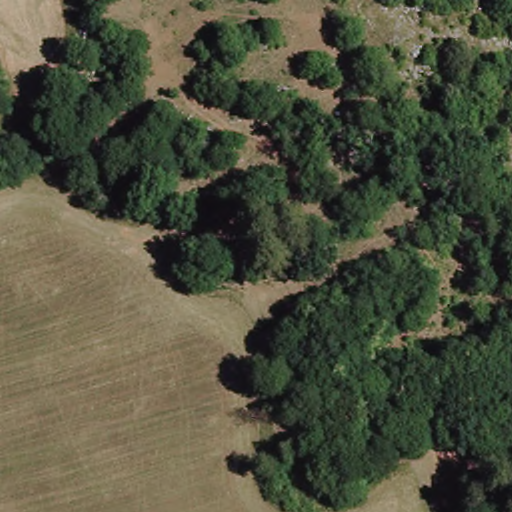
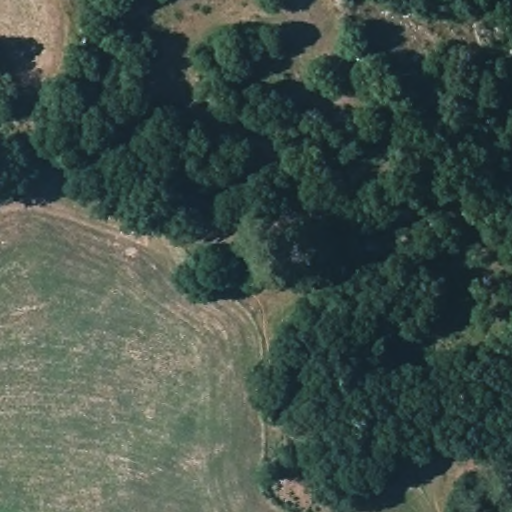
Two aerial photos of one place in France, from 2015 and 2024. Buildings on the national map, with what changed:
unchanged [(256,276),(238,255),(259,239),(276,259),(256,276)]

